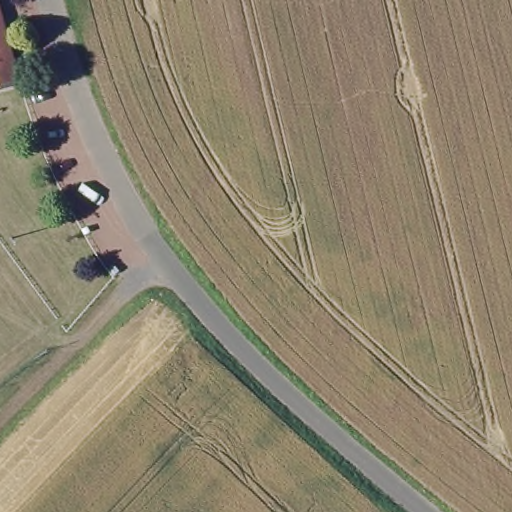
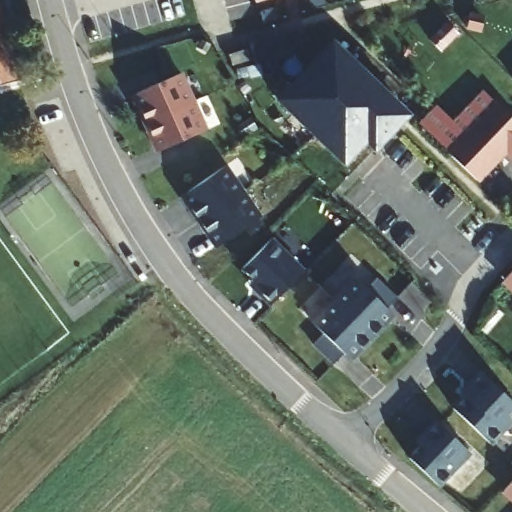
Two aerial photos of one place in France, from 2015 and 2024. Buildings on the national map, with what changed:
new [(253,0),(263,0),(254,2),(253,0)]
unchanged [(17,82),(0,86),(0,9),(17,82)]
new [(254,64),(248,42),(285,32),(291,53),(254,64)]
new [(410,114),(374,152),(366,144),(343,166),(275,100),(333,41),(410,114)]
new [(246,50),(250,60),(232,65),(229,55),(246,50)]
new [(208,127),(155,152),(130,97),(183,73),(208,127)]
new [(512,162),(505,156),(479,182),(446,152),(495,102),(512,117),(512,162)]
new [(262,217),(215,249),(178,195),(226,164),(262,217)]
new [(304,268),(269,307),(248,287),(252,282),(241,271),(272,239),(304,268)]
new [(512,273),(512,293),(501,283),(512,273)]
new [(398,298),(386,308),(395,317),(351,361),(343,351),(333,363),(313,346),(323,332),(310,322),(354,278),(365,288),(377,277),(398,298)]
new [(512,423),(492,445),(451,407),(463,396),(460,393),(480,372),(512,402),(512,423)]
new [(472,455),(440,487),(408,458),(420,445),(415,442),(435,421),(472,455)]
new [(512,483),(512,504),(502,494),(512,483)]

